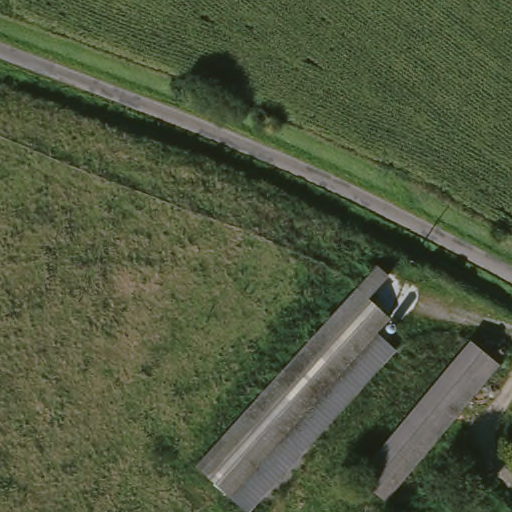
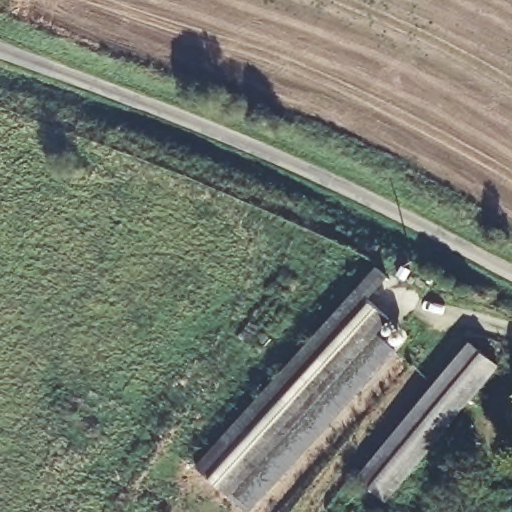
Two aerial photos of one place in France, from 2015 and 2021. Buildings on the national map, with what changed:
unchanged [(392,319),(374,337),(392,355),(246,511),(198,469),(358,289),(392,319)]
unchanged [(357,476),(471,340),(499,362),(386,500),(357,476)]

